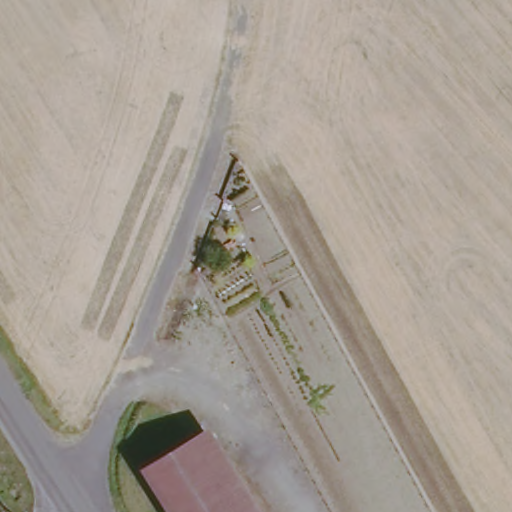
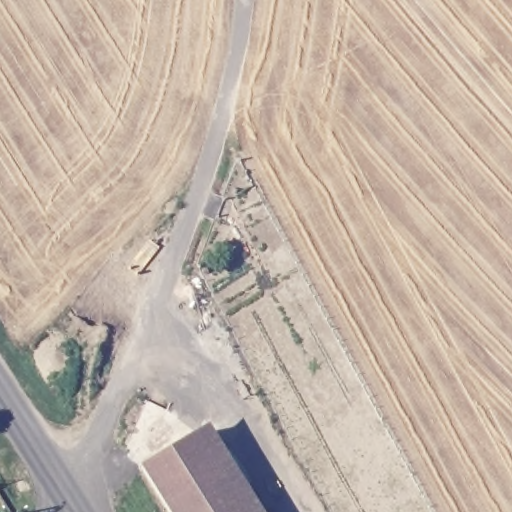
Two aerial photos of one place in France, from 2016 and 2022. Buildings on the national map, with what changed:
unchanged [(260,512),(166,512),(139,469),(208,427),(260,512)]

